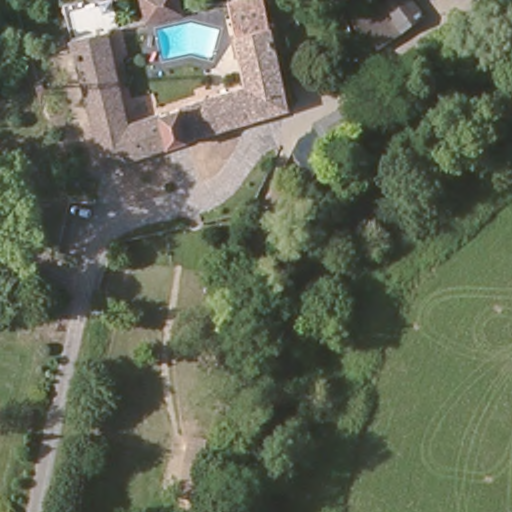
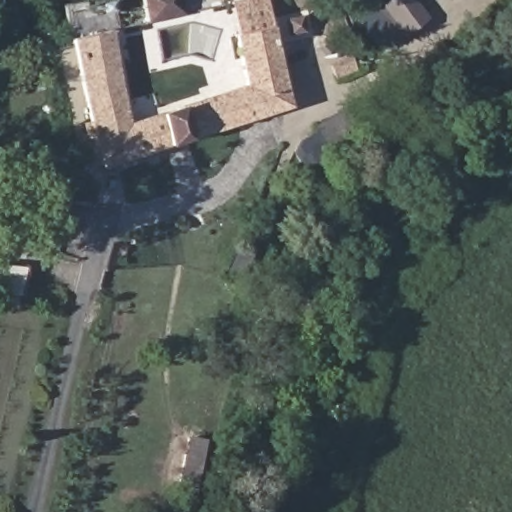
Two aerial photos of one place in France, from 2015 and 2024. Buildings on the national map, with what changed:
unchanged [(223,4),(235,0),(259,0),(266,24),(233,34),(223,4)]
unchanged [(353,19),(379,0),(411,0),(420,17),(378,48),(353,19)]
unchanged [(106,158),(65,41),(101,29),(127,108),(137,105),(141,116),(246,84),(233,34),(266,24),(290,102),(106,158)]

